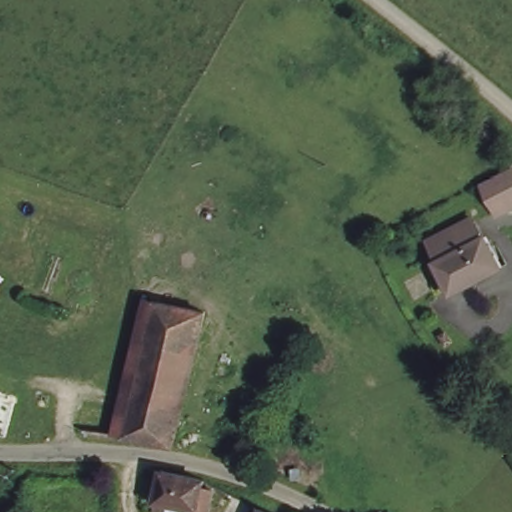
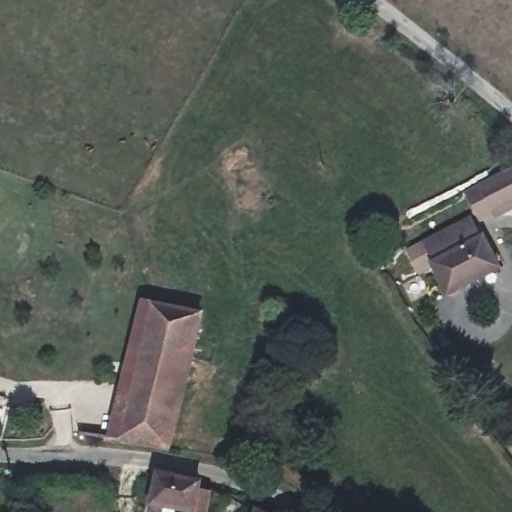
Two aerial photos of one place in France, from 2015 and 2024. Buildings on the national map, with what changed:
unchanged [(429,243),(471,221),(474,226),(483,242),(487,241),(502,269),(452,296),(437,266),(440,265),(432,248),(429,243)]
unchanged [(84,418),(124,421),(151,308),(201,319),(171,456),(163,454),(119,441),(79,441),(84,418)]
unchanged [(194,496),(206,498),(202,512),(179,512),(148,507),(154,475),(196,487),(194,496)]

